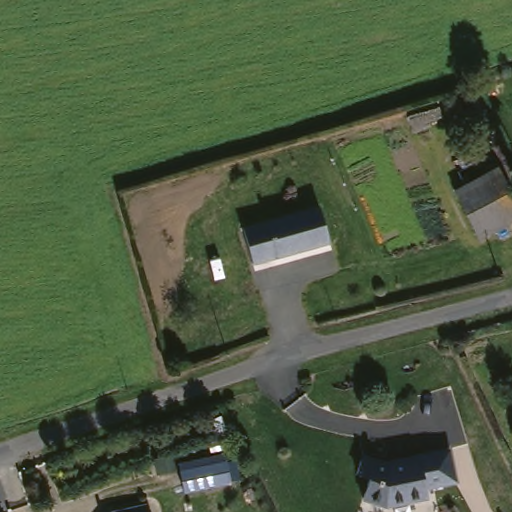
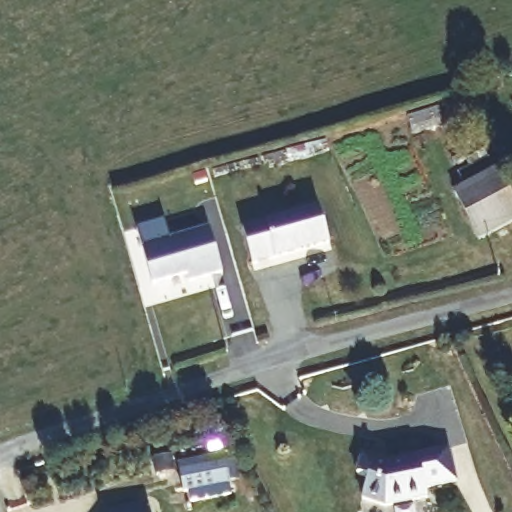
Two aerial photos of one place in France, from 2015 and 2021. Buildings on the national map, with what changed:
unchanged [(512,196),(512,227),(478,243),(455,196),(500,173),(512,196)]
unchanged [(330,246),(255,269),(244,231),(320,208),(330,246)]
new [(162,221),(170,241),(209,229),(224,274),(190,285),(187,278),(155,288),(138,230),(162,221)]
unchanged [(456,486),(425,492),(427,501),(385,509),(363,502),(370,482),(357,478),(363,460),(391,470),(401,468),(401,465),(417,462),(417,460),(448,454),(456,486)]
unchanged [(181,468),(227,462),(230,483),(184,490),(181,468)]
unchanged [(150,512),(114,512),(114,510),(149,505),(150,512)]

